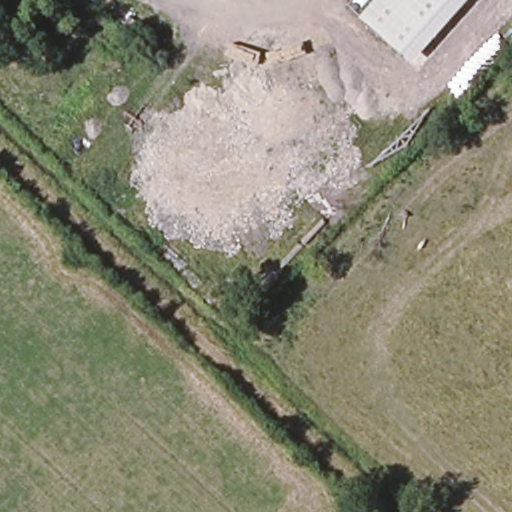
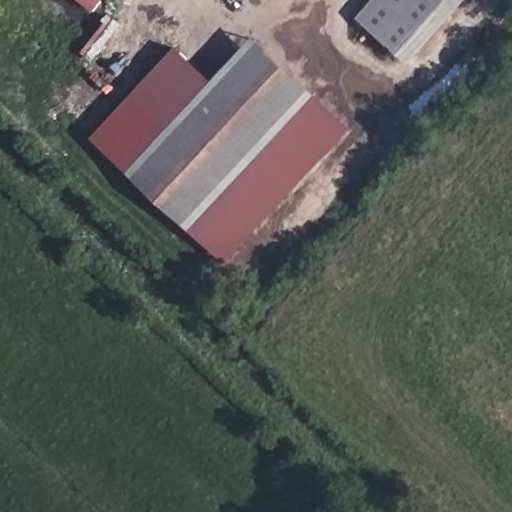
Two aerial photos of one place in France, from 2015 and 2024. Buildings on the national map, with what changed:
unchanged [(373,0),(467,0),(409,64),(357,18),(373,0)]
new [(180,50),(212,83),(259,40),(354,129),(227,264),(94,138),(180,50)]

